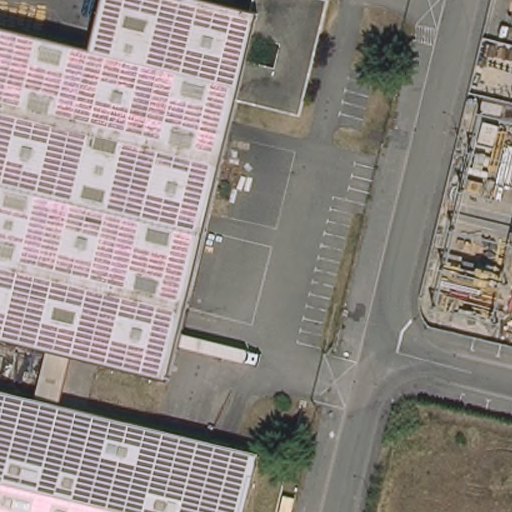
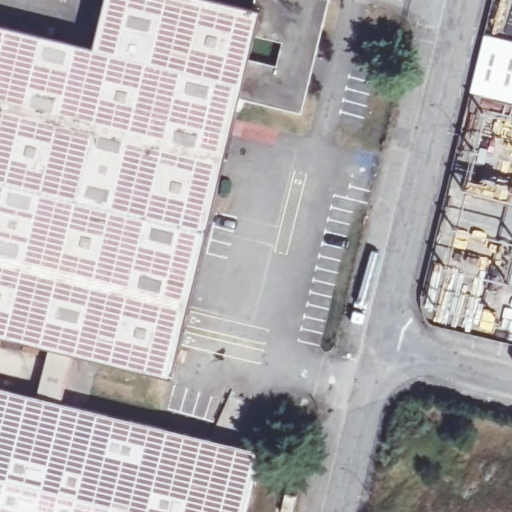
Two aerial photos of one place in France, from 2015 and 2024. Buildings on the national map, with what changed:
unchanged [(93,37),(103,0),(245,0),(253,2),(253,0),(328,0),(302,111),(238,94),(187,305),(0,262),(0,14),(93,37)]
new [(512,40),(512,104),(468,93),(483,33),(512,40)]
unchanged [(187,305),(170,375),(70,351),(58,405),(262,454),(249,512),(0,512),(0,391),(37,400),(50,347),(0,335),(0,262),(187,305)]

